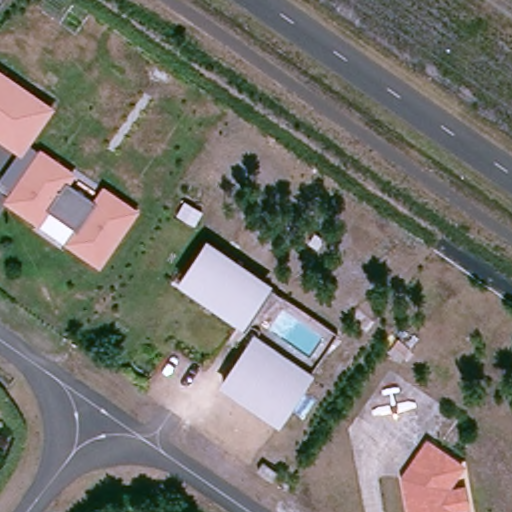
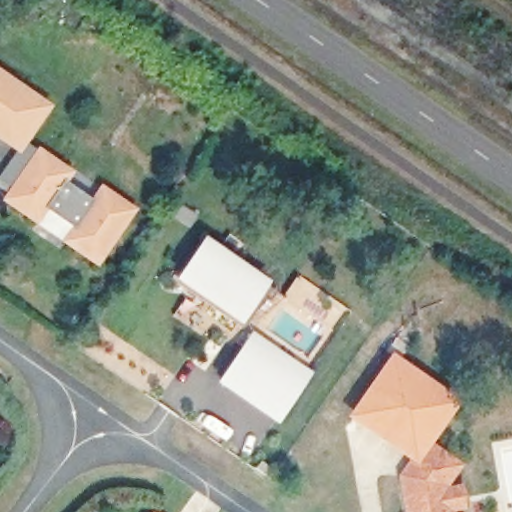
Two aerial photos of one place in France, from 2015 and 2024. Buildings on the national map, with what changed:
unchanged [(18,147),(0,134),(0,70),(48,104),(18,147)]
unchanged [(98,258),(67,235),(73,228),(44,207),(39,215),(8,193),(39,150),(70,172),(64,180),(92,200),(101,188),(132,210),(98,258)]
unchanged [(203,208),(192,224),(175,212),(187,196),(203,208)]
unchanged [(207,238),(266,280),(241,315),(182,273),(207,238)]
unchanged [(308,373),(275,418),(221,380),(253,334),(308,373)]
new [(392,351),(462,400),(432,442),(428,439),(412,462),(347,417),(392,351)]
unchanged [(428,439),(464,465),(453,484),(465,483),(470,507),(457,510),(460,512),(408,512),(401,478),(428,439)]
demolished [(245,478),(262,490),(258,495),(256,498),(240,486),(245,478)]

